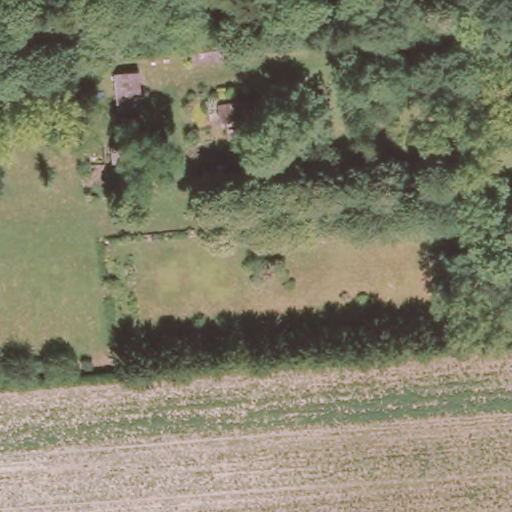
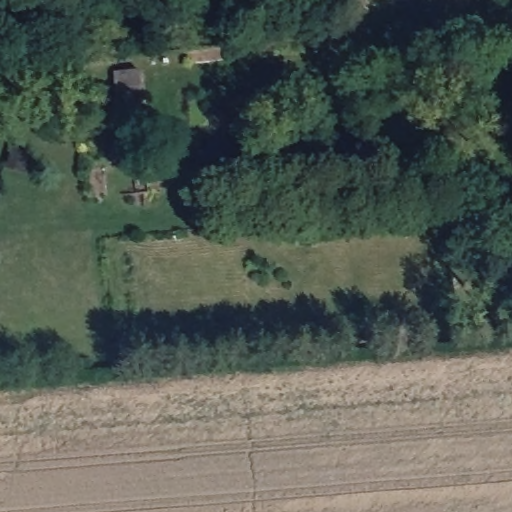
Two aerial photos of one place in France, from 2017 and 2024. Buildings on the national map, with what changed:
unchanged [(137,69),(141,107),(118,109),(113,71),(137,69)]
unchanged [(266,100),(268,114),(256,115),(254,101),(266,100)]
unchanged [(219,105),(249,102),(251,116),(221,119),(219,105)]

